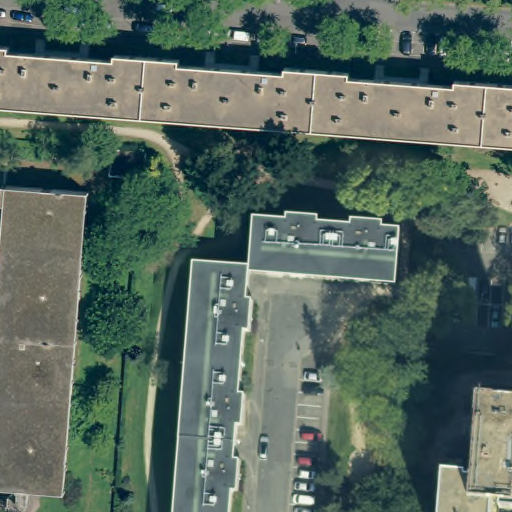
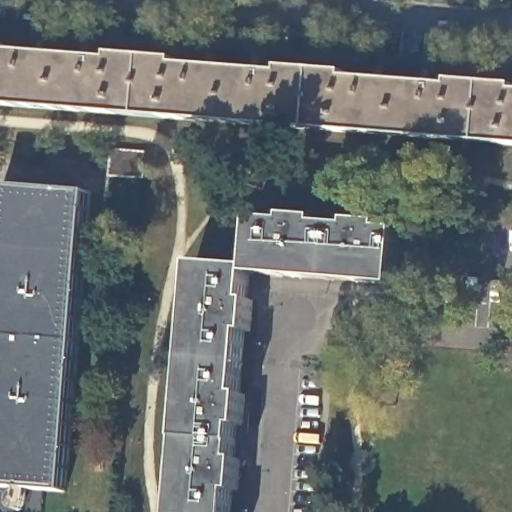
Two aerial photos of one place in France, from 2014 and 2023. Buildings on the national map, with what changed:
unchanged [(288,127),(226,122),(113,114),(0,104),(0,45),(9,46),(9,50),(115,58),(115,54),(179,59),(179,63),(284,72),(284,67),(349,72),(348,76),(453,85),(453,80),(512,85),(512,144),(463,141),(288,127)]
unchanged [(147,152),(145,179),(109,175),(111,149),(147,152)]
unchanged [(0,485),(0,270),(5,205),(1,205),(3,186),(88,193),(65,491),(0,485)]
unchanged [(250,273),(250,268),(254,218),(286,221),(286,215),(318,218),(317,223),(350,226),(350,220),(382,223),(382,228),(399,230),(395,285),(255,274),(250,273)]
unchanged [(245,333),(240,396),(245,396),(245,398),(243,428),(238,427),(235,461),(240,462),(237,493),(232,492),(230,512),(176,512),(196,263),(250,268),(250,273),(248,301),(252,302),(250,333),(245,333)]
demolished [(478,398),(512,400),(512,512),(439,512),(443,472),(471,474),(478,398)]

